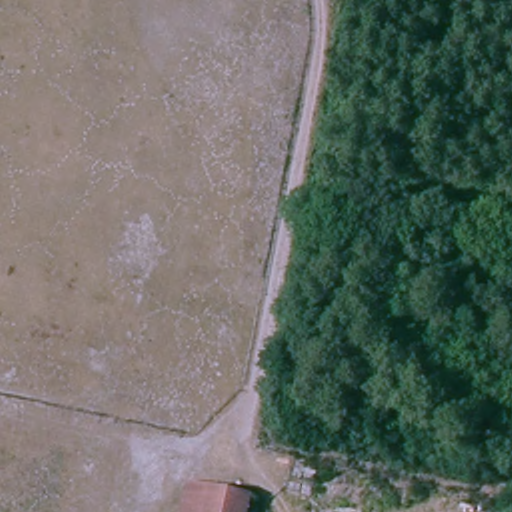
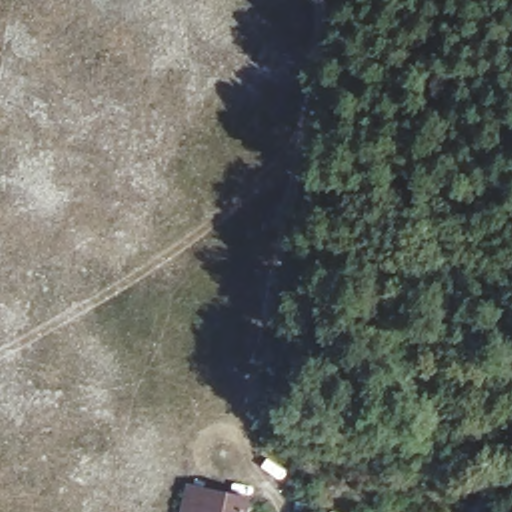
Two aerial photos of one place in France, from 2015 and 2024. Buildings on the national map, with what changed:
unchanged [(182,483),(201,488),(195,512),(175,512),(182,483)]
unchanged [(201,488),(244,497),(240,512),(195,512),(201,488)]

